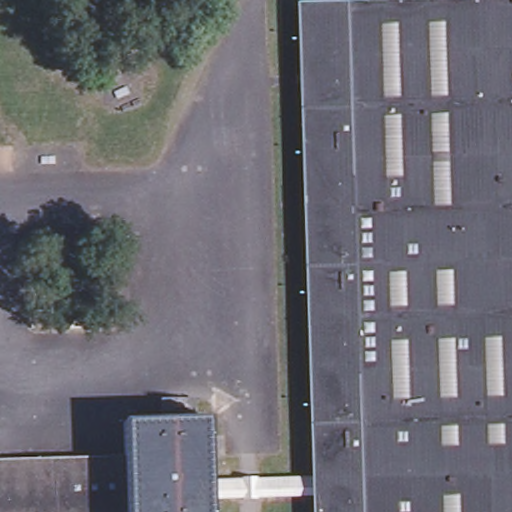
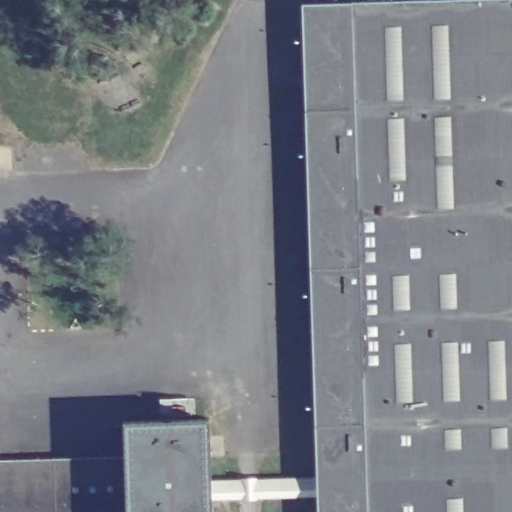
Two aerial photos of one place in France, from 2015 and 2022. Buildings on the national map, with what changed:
unchanged [(352,8),(512,3),(512,512),(317,512),(317,501),(316,484),(302,10),(352,8)]
unchanged [(209,424),(211,487),(212,504),(212,512),(125,512),(124,462),(123,427),(209,424)]
unchanged [(125,512),(0,512),(0,465),(124,462),(125,512)]
unchanged [(316,484),(317,501),(212,504),(211,487),(316,484)]

